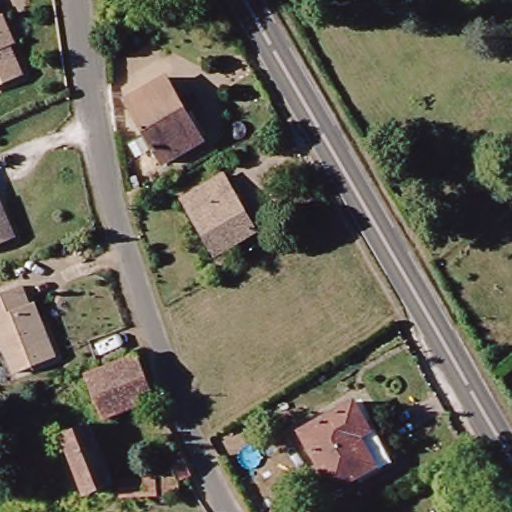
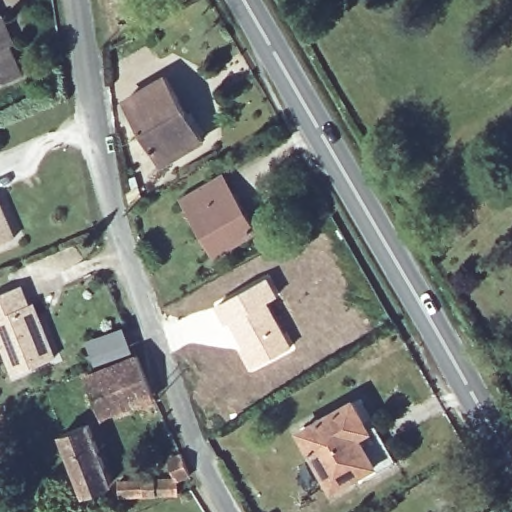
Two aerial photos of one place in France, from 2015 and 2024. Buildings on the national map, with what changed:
unchanged [(0,18),(3,17),(8,30),(6,36),(23,76),(0,87),(0,18)]
unchanged [(164,78),(201,140),(163,163),(126,100),(164,78)]
unchanged [(216,254),(184,199),(222,177),(254,231),(216,254)]
unchanged [(13,237),(0,242),(0,208),(13,237)]
new [(267,275),(279,295),(269,302),(293,346),(249,372),(238,351),(241,349),(215,305),(267,275)]
unchanged [(3,348),(0,349),(0,292),(19,284),(27,304),(32,303),(40,322),(53,356),(13,372),(3,348)]
unchanged [(103,418),(86,375),(137,354),(153,397),(103,418)]
unchanged [(70,470),(46,409),(73,399),(96,459),(70,470)]
unchanged [(359,431),(366,428),(385,462),(366,474),(362,468),(322,489),(290,431),(343,402),(359,431)]
demolished [(174,448),(170,449),(162,453),(154,434),(166,429),(174,448)]
unchanged [(190,470),(186,472),(178,475),(170,457),(182,451),(190,470)]
demolished [(161,453),(161,469),(105,472),(105,457),(161,453)]
unchanged [(177,475),(177,491),(121,494),(121,479),(177,475)]

